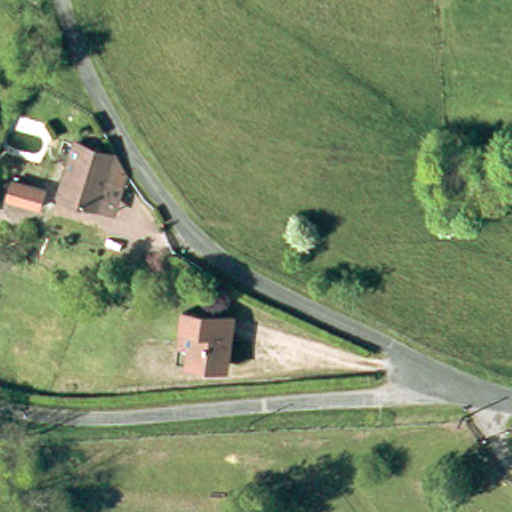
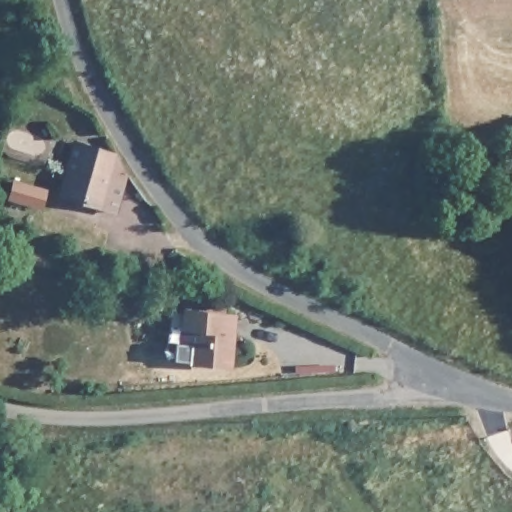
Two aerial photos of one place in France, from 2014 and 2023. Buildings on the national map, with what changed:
unchanged [(118,213),(105,211),(57,197),(72,146),(118,157),(127,174),(118,213)]
unchanged [(222,372),(187,368),(188,352),(178,352),(181,317),(222,319),(234,320),(231,353),(230,372),(222,372)]

